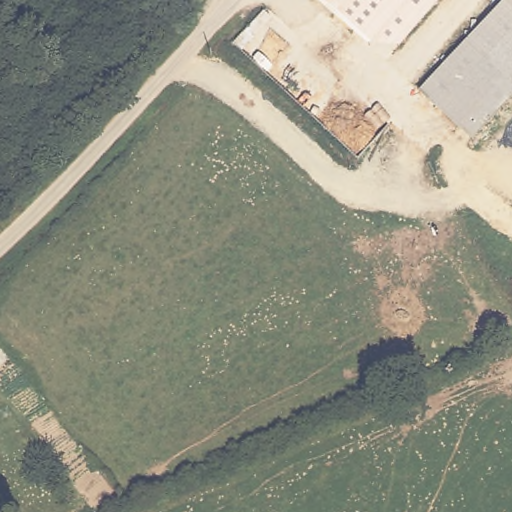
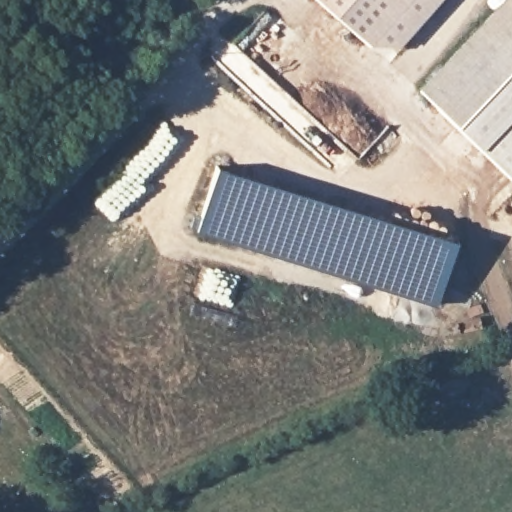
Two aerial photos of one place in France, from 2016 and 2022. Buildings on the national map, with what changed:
unchanged [(400,47),(371,46),(318,0),(440,0),(400,47)]
unchanged [(474,140),(421,93),(465,42),(502,0),(512,0),(512,97),(474,140)]
new [(474,140),(512,97),(512,177),(474,140)]
new [(218,165),(458,238),(437,304),(197,232),(218,165)]

